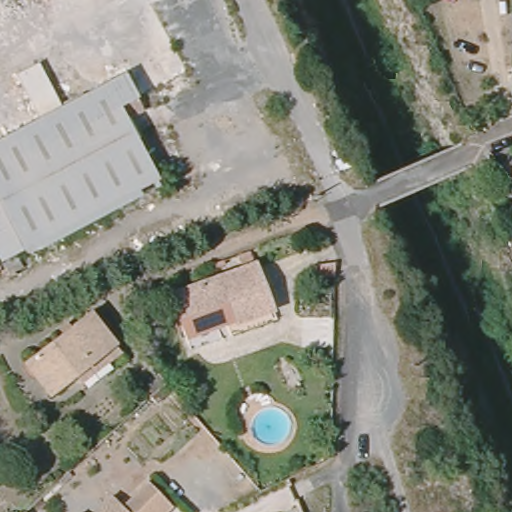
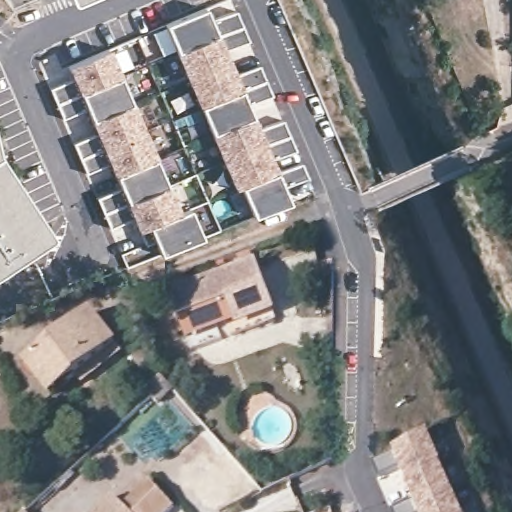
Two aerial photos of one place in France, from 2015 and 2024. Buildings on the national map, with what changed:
new [(66,1),(65,0),(68,0),(66,1)]
demolished [(0,205),(0,27),(40,6),(87,94),(125,74),(138,98),(154,128),(137,137),(159,179),(24,250),(0,205)]
new [(209,22),(233,10),(246,41),(224,51),(235,74),(256,64),(270,94),(248,106),(258,129),(279,119),(292,149),(270,159),(275,170),(297,160),(306,177),(281,188),(288,203),(252,218),(239,187),(235,188),(165,25),(203,9),(209,22)]
new [(178,211),(188,207),(201,238),(159,255),(154,240),(144,246),(137,231),(132,219),(109,228),(96,198),(120,188),(110,164),(85,174),(73,143),(97,135),(87,109),(62,118),(50,89),(72,81),(65,64),(108,48),(178,211)]
new [(48,234),(0,266),(0,162),(48,234)]
unchanged [(180,321),(170,295),(242,270),(239,261),(238,257),(250,252),(252,257),(255,265),(272,310),(237,322),(233,313),(183,331),(180,321)]
demolished [(16,254),(23,268),(10,275),(3,262),(16,254)]
unchanged [(319,265),(334,264),(334,277),(320,277),(319,265)]
unchanged [(82,383),(76,376),(50,396),(25,363),(91,312),(116,345),(122,352),(82,383)]
unchanged [(157,403),(150,397),(145,391),(161,377),(166,382),(172,389),(157,403)]
new [(374,471),(372,462),(428,438),(442,470),(408,485),(401,468),(377,479),(374,471)]
new [(408,485),(442,470),(455,501),(430,512),(391,512),(390,511),(415,500),(408,485)]
demolished [(430,485),(448,479),(456,498),(438,504),(430,485)]
unchanged [(124,508),(151,482),(175,508),(170,512),(97,512),(113,497),(124,508)]
new [(460,512),(430,512),(455,501),(460,512)]

